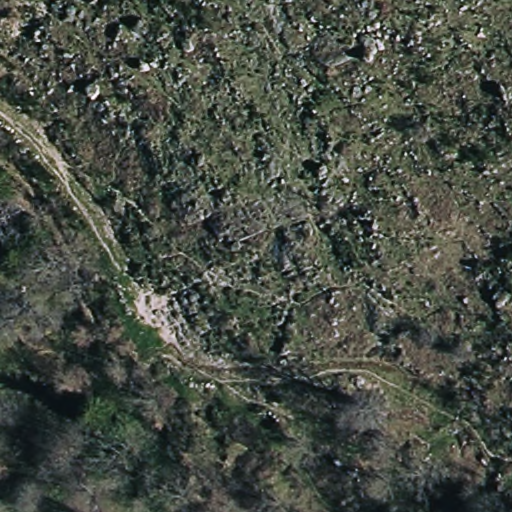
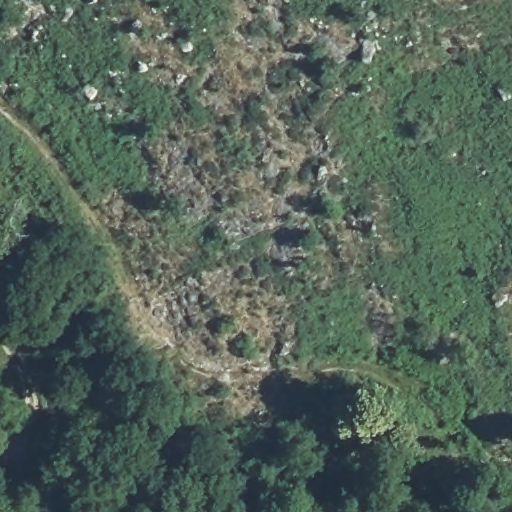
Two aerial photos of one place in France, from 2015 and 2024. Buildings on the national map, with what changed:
[]

